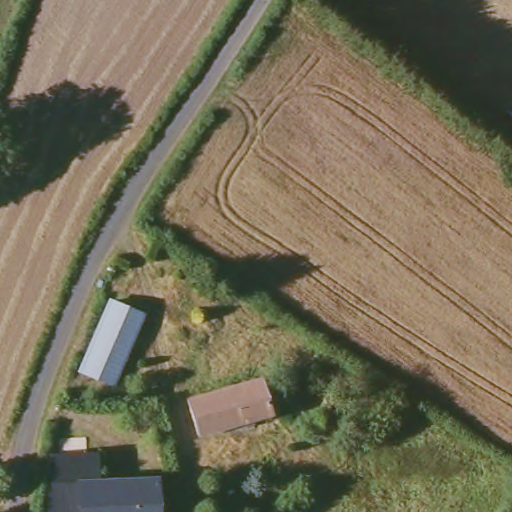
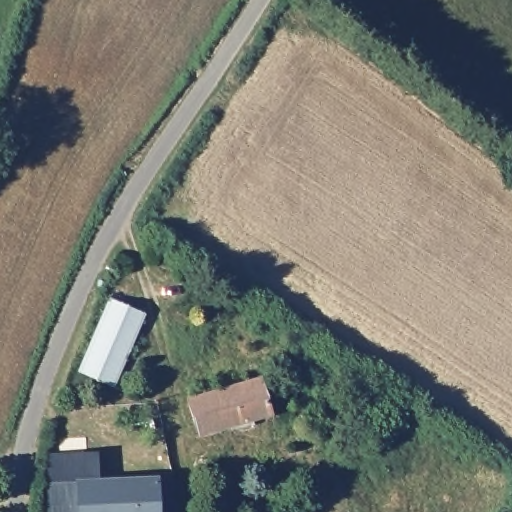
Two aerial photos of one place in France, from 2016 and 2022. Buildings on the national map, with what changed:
unchanged [(147,313),(119,383),(85,370),(114,301),(147,313)]
unchanged [(264,418),(197,437),(187,403),(266,385),(271,402),(274,415),(264,418)]
unchanged [(159,481),(159,490),(159,512),(45,512),(47,453),(77,453),(96,453),(97,462),(97,480),(139,481),(159,481)]

